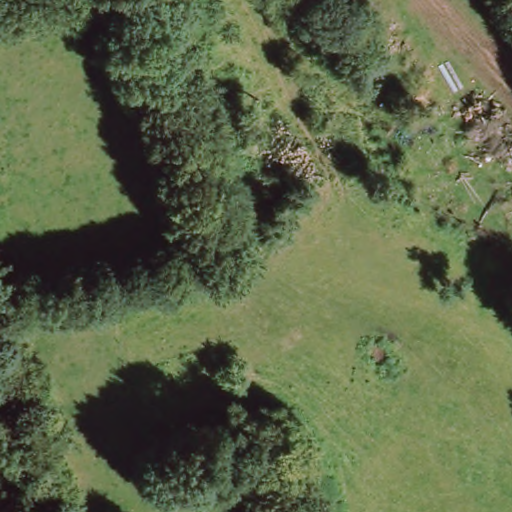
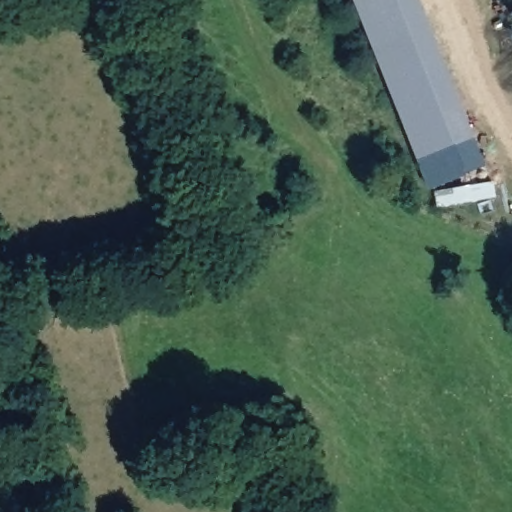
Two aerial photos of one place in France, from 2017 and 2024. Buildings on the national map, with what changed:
new [(354,0),(419,0),(486,165),(466,173),(467,175),(428,190),(354,0)]

